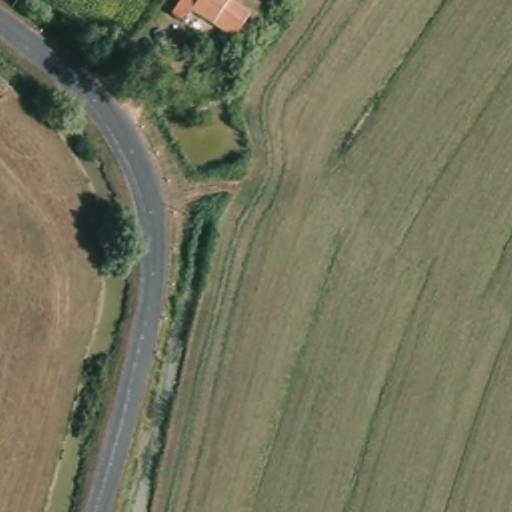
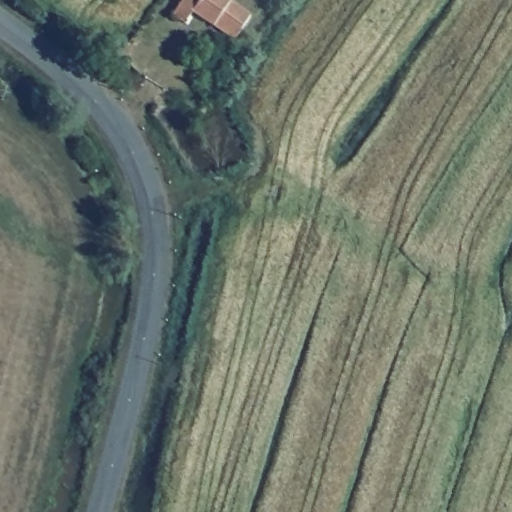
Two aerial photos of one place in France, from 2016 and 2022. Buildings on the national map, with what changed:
unchanged [(194,15),(185,26),(173,16),(185,0),(218,0),(246,19),(230,41),(194,15)]

